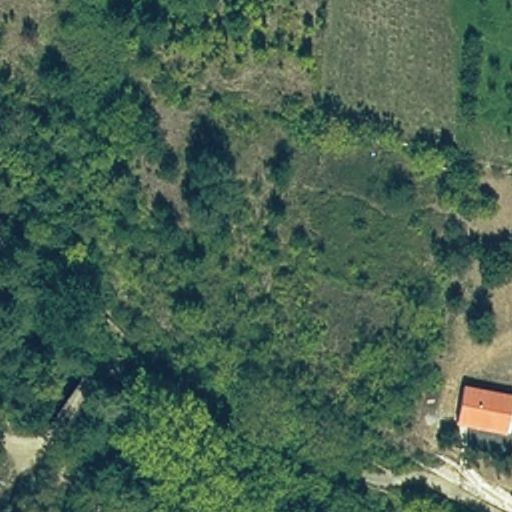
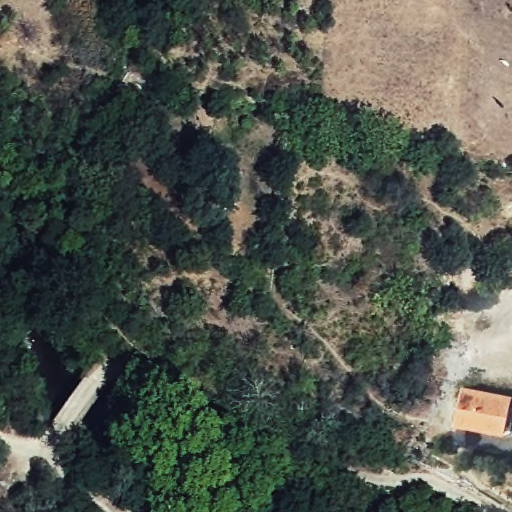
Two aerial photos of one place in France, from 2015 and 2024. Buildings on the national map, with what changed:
unchanged [(506,398),(502,433),(452,427),(456,392),(506,398)]

